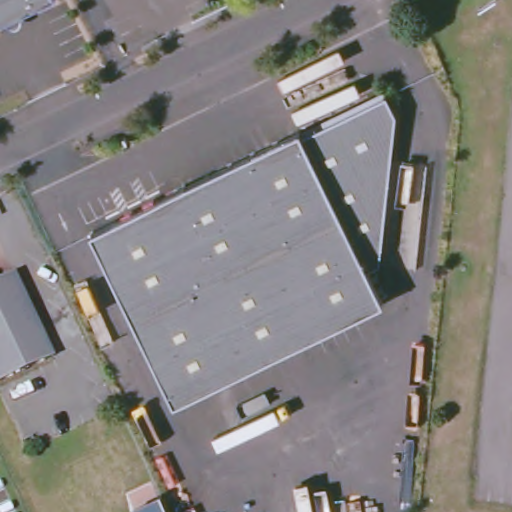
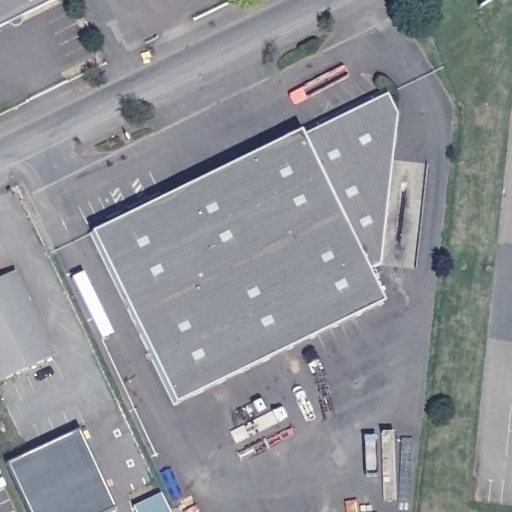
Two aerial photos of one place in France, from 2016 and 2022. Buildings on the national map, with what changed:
unchanged [(0,0),(55,0),(0,26),(0,0)]
unchanged [(88,238),(297,135),(299,140),(383,99),(393,119),(377,269),(365,274),(381,307),(172,409),(88,238)]
unchanged [(50,356),(0,380),(0,277),(10,272),(50,356)]
new [(77,429),(114,508),(106,512),(27,512),(4,464),(77,429)]
new [(159,495),(167,512),(133,512),(131,508),(159,495)]

